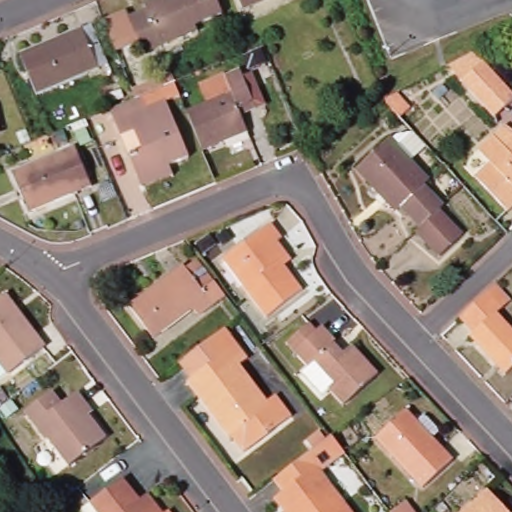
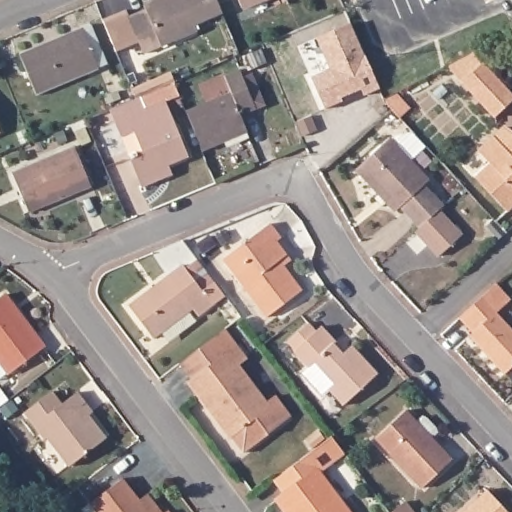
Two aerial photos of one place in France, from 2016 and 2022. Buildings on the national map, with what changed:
unchanged [(144,55),(139,43),(117,52),(103,21),(127,11),(130,16),(147,9),(144,3),(151,0),(217,0),(223,14),(196,26),(198,32),(144,55)]
unchanged [(239,0),(263,0),(242,9),(239,0)]
unchanged [(109,60),(37,89),(21,50),(92,20),(109,60)]
new [(381,90),(364,97),(361,91),(352,94),(353,99),(325,110),(311,77),(329,69),(317,39),(351,23),(381,90)]
unchanged [(462,83),(447,66),(474,52),(485,62),(512,92),(512,101),(495,118),(462,83)]
unchanged [(142,187),(138,178),(111,109),(136,99),(152,92),(146,79),(171,69),(176,82),(175,83),(180,96),(166,101),(190,157),(170,166),(173,176),(142,187)]
unchanged [(203,152),(187,112),(207,103),(200,87),(225,76),(240,70),(257,109),(242,116),(249,132),(203,152)]
unchanged [(375,199),(381,194),(357,169),(389,139),(391,141),(397,135),(412,132),(426,147),(411,162),(428,182),(424,186),(443,207),(440,210),(428,220),(427,222),(421,227),(401,207),(397,211),(388,202),(382,207),(375,199)]
unchanged [(470,177),(485,163),(473,151),(488,136),(501,149),(512,138),(512,204),(503,212),(470,177)]
unchanged [(92,187),(30,212),(14,172),(75,147),(92,187)]
unchanged [(462,236),(440,257),(417,232),(421,227),(427,222),(428,220),(440,210),(462,236)]
unchanged [(267,313),(222,255),(271,219),(282,233),(277,237),(287,250),(291,255),(283,260),(303,286),(267,313)]
unchanged [(226,297),(202,313),(197,307),(154,339),(129,306),(184,265),(186,268),(197,259),(226,297)]
unchanged [(470,336),(473,333),(460,318),(487,292),(497,283),(511,300),(503,307),(497,313),(512,330),(512,368),(506,375),(470,336)]
unchanged [(45,348),(10,374),(0,361),(0,298),(4,295),(45,348)]
unchanged [(378,368),(343,401),(328,383),(334,378),(325,368),(311,380),(307,374),(306,368),(308,363),(287,338),(309,317),(317,327),(322,321),(337,337),(335,340),(343,348),(352,341),(378,368)]
unchanged [(271,407),(278,401),(291,417),(292,417),(244,453),(232,437),(230,439),(187,382),(192,380),(180,364),(225,329),(248,358),(240,366),(271,407)]
unchanged [(70,467),(47,438),(46,440),(25,412),(31,407),(52,392),(62,404),(78,392),(88,406),(92,412),(88,415),(107,438),(70,467)]
unchanged [(457,458),(426,487),(379,437),(410,408),(421,420),(427,415),(432,417),(440,426),(442,431),(437,437),(457,458)]
unchanged [(276,498),(283,492),(274,481),(332,437),(345,453),(320,473),(349,512),(286,512),(276,498)]
unchanged [(77,510),(85,503),(119,478),(135,500),(143,494),(157,512),(79,512),(77,510)]
unchanged [(487,490),(508,512),(464,512),(487,490)]
unchanged [(393,511),(411,497),(422,512),(394,512),(393,511)]
unchanged [(164,511),(164,512),(162,512),(164,511)]

